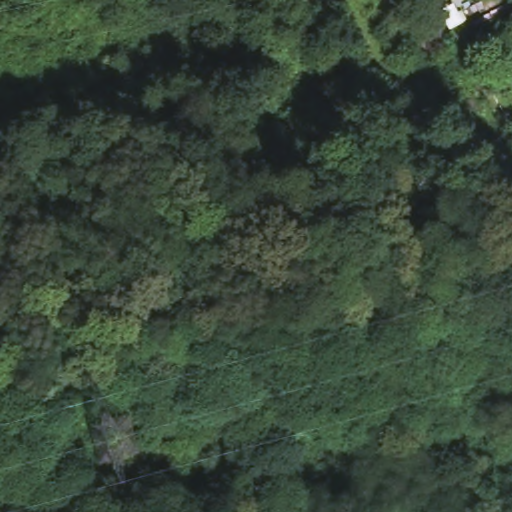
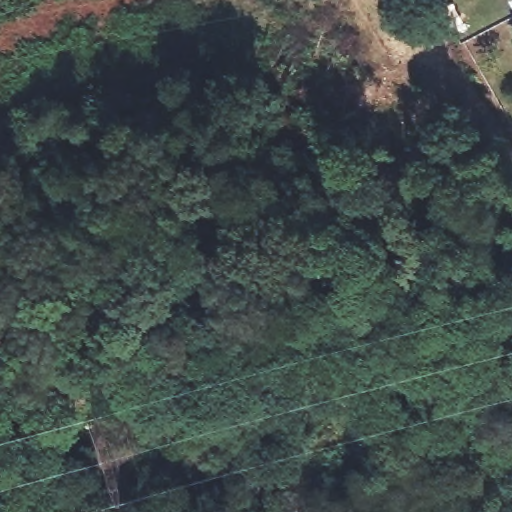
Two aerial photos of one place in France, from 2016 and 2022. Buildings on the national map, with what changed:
[]

